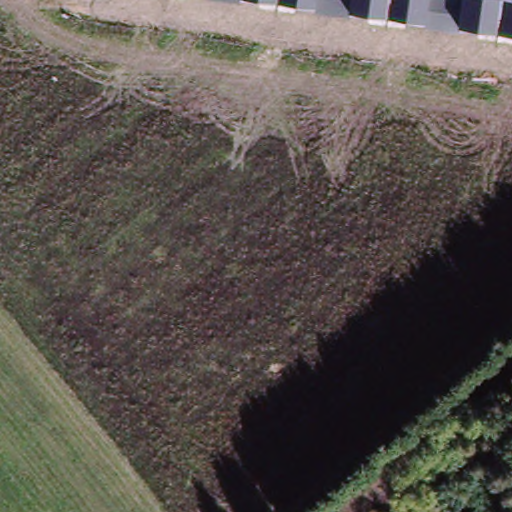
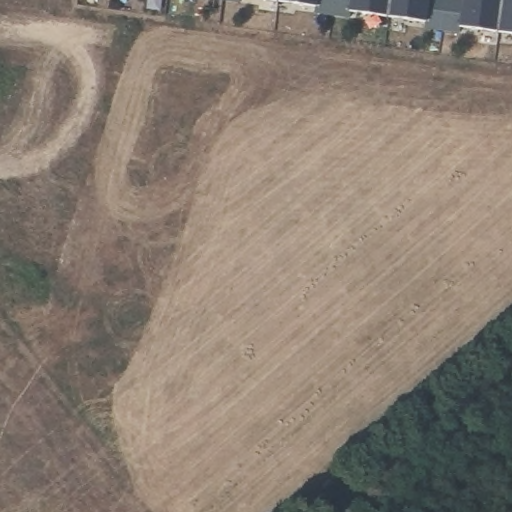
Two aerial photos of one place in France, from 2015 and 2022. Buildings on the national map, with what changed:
unchanged [(240,2),(226,0),(240,0),(240,2)]
unchanged [(512,0),(512,34),(461,27),(460,31),(425,27),(426,21),(351,12),(350,17),(315,12),(315,7),(260,0),(511,0),(512,0)]

